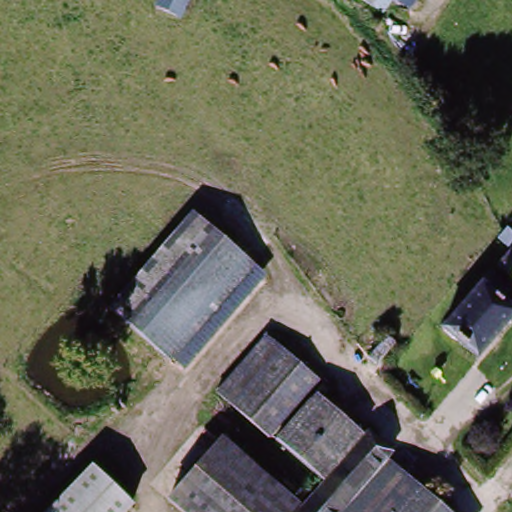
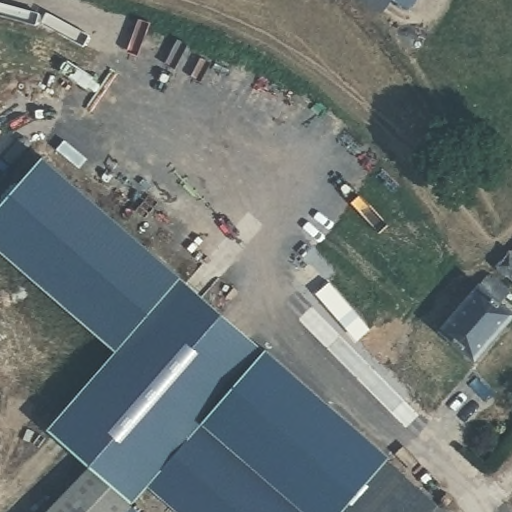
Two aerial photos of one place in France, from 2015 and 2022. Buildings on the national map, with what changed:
demolished [(153,8),(157,0),(187,0),(175,20),(153,8)]
unchanged [(370,0),(396,0),(390,11),(370,0)]
unchanged [(398,0),(421,0),(415,10),(398,0)]
new [(49,427),(115,351),(0,251),(0,205),(44,156),(267,347),(391,457),(343,512),(182,512),(148,483),(131,502),(90,464),(49,427)]
unchanged [(503,250),(490,240),(505,223),(512,229),(512,281),(492,266),(503,250)]
unchanged [(471,359),(440,331),(475,288),(485,276),(503,291),(492,304),(507,315),(471,359)]
demolished [(281,346),(317,377),(268,436),(231,403),(281,346)]
demolished [(280,440),(318,394),(368,435),(327,482),(280,440)]
demolished [(327,482),(368,435),(369,434),(394,454),(391,457),(343,512),(301,512),(327,482)]
unchanged [(391,457),(454,512),(343,512),(391,457)]
unchanged [(121,512),(46,512),(90,464),(131,502),(121,512)]

